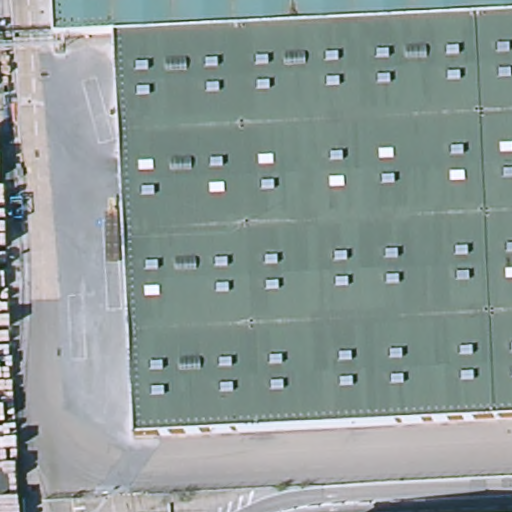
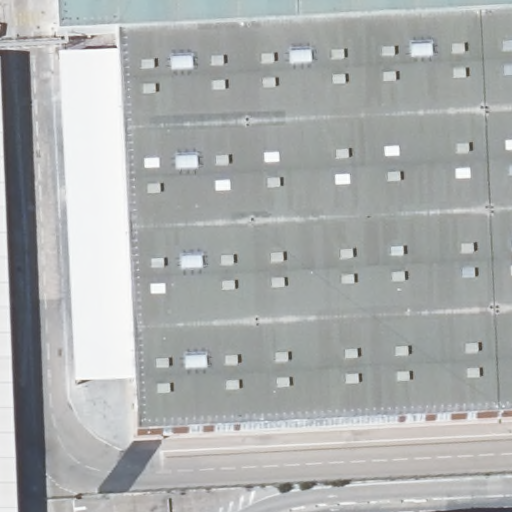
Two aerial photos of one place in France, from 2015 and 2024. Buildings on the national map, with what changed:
unchanged [(117,32),(58,36),(56,0),(512,0),(512,419),(136,439),(117,32)]
new [(132,383),(75,385),(59,56),(116,55),(132,383)]
new [(17,512),(0,512),(0,74),(17,512)]

